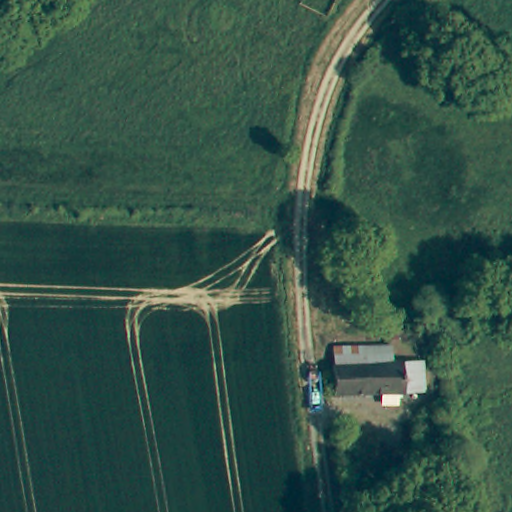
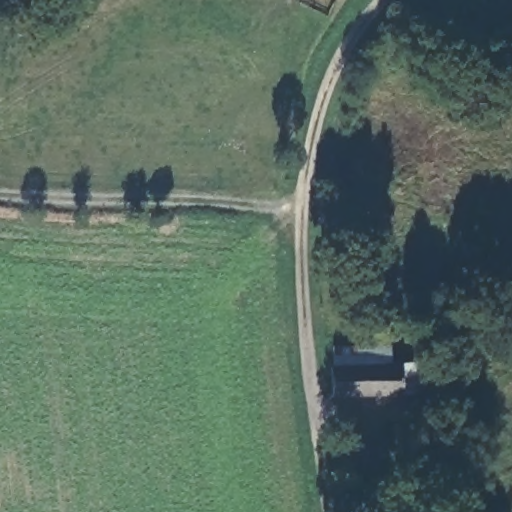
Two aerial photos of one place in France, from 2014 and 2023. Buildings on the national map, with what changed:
unchanged [(425,392),(416,391),(395,392),(340,396),(336,364),(334,346),(365,345),(396,344),(397,361),(416,360),(426,359),(425,392)]

